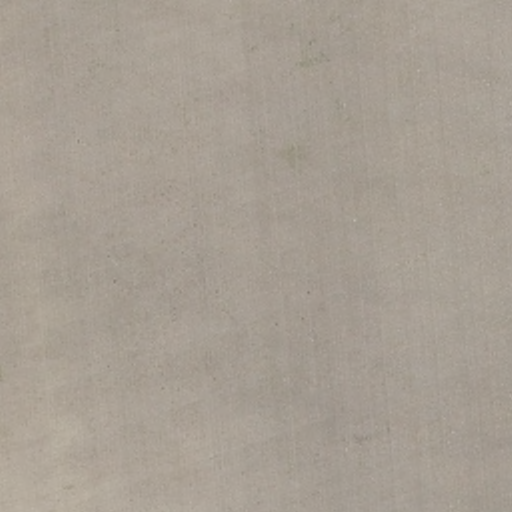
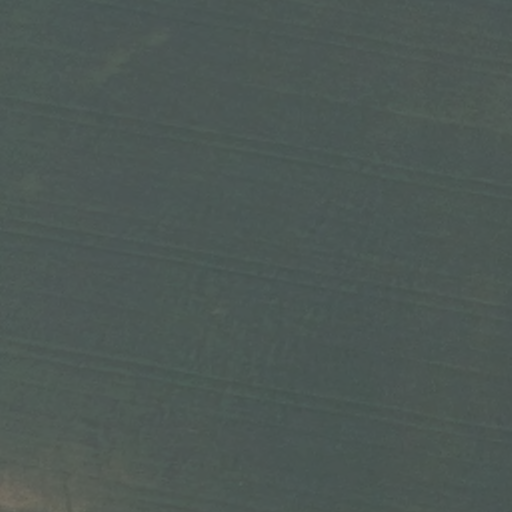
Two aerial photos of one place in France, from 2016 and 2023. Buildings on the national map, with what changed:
[]

